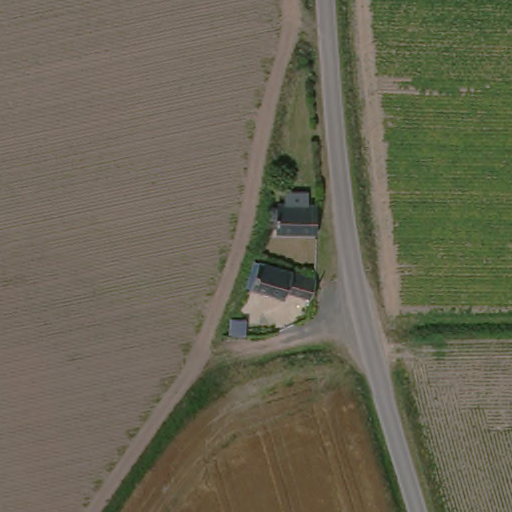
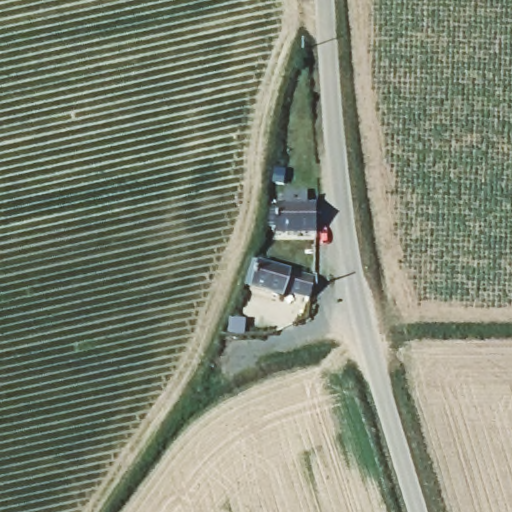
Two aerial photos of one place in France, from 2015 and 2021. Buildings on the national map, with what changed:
unchanged [(315,225),(275,227),(275,192),(308,191),(308,195),(314,194),(315,225)]
unchanged [(310,275),(308,299),(280,289),(277,296),(250,286),(260,258),(310,275)]

